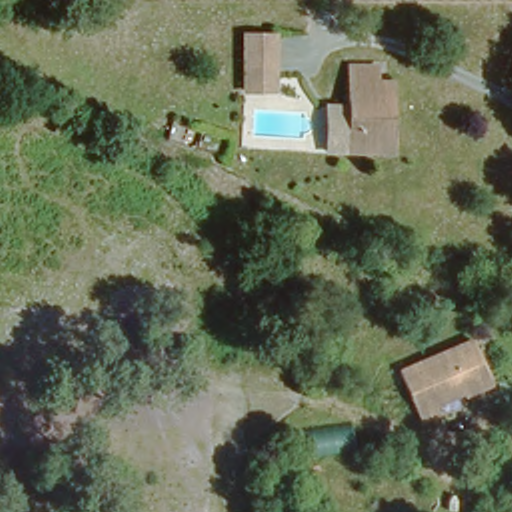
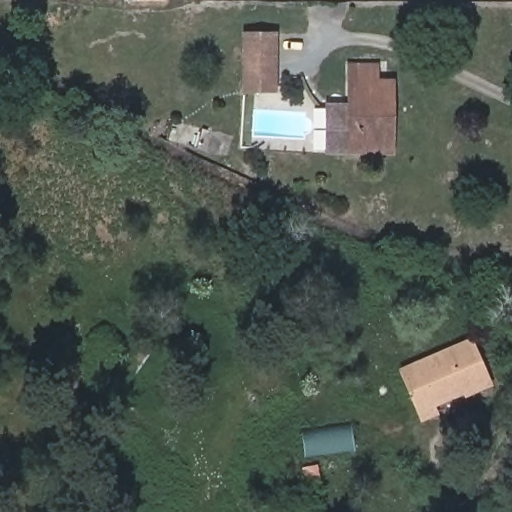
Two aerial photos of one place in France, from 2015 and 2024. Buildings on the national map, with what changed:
unchanged [(244,90),(243,80),(242,33),(274,33),(275,80),(275,90),(244,90)]
unchanged [(385,151),(337,150),(337,109),(352,110),(350,64),(377,64),(377,81),(392,81),(393,117),(393,151),(385,151)]
unchanged [(488,378),(434,402),(437,411),(421,417),(400,372),(472,341),(488,378)]

